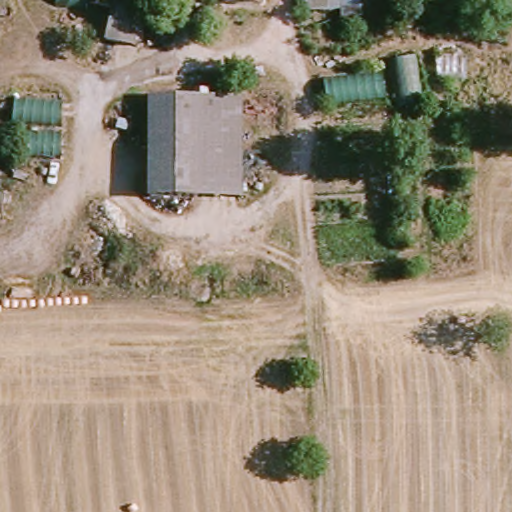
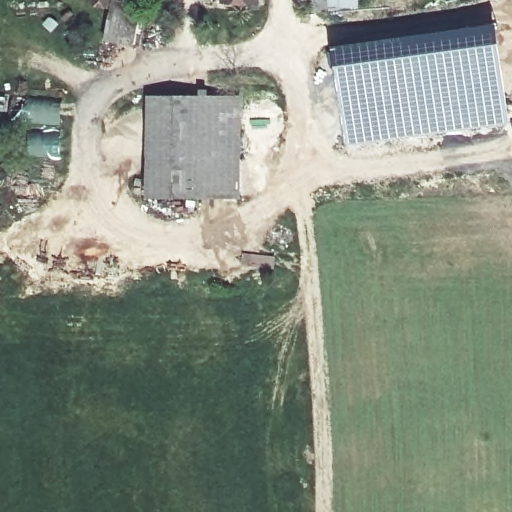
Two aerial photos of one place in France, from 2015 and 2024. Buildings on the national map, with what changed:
unchanged [(54,8),(55,0),(87,0),(86,11),(54,8)]
unchanged [(91,5),(92,0),(113,0),(111,9),(91,5)]
unchanged [(113,0),(143,0),(134,48),(105,42),(111,9),(113,0)]
unchanged [(219,5),(219,0),(253,0),(253,7),(219,5)]
unchanged [(304,13),(302,0),(361,0),(361,12),(304,13)]
new [(347,146),(334,48),(500,24),(511,123),(347,146)]
demolished [(419,52),(425,104),(396,109),(389,55),(419,52)]
demolished [(386,74),(388,103),(331,109),(328,80),(386,74)]
unchanged [(148,194),(146,98),(239,98),(240,193),(148,194)]
unchanged [(65,99),(64,125),(13,122),(15,99),(65,99)]
unchanged [(63,134),(63,158),(27,158),(28,134),(63,134)]

